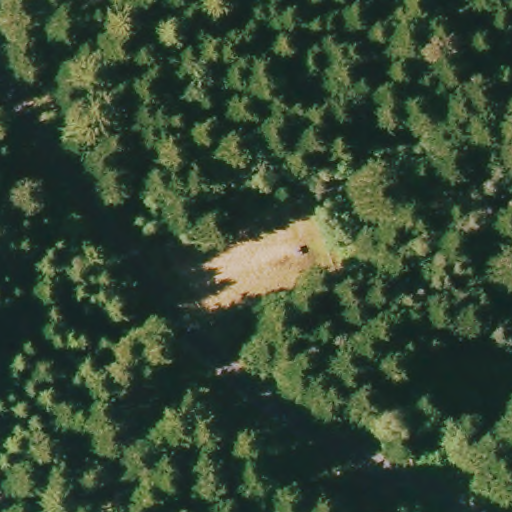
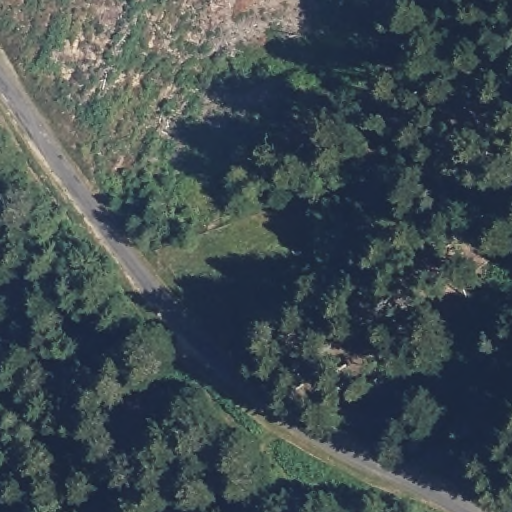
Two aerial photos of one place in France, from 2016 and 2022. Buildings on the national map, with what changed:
unchanged [(332,295),(337,306),(326,311),(322,299),(332,295)]

